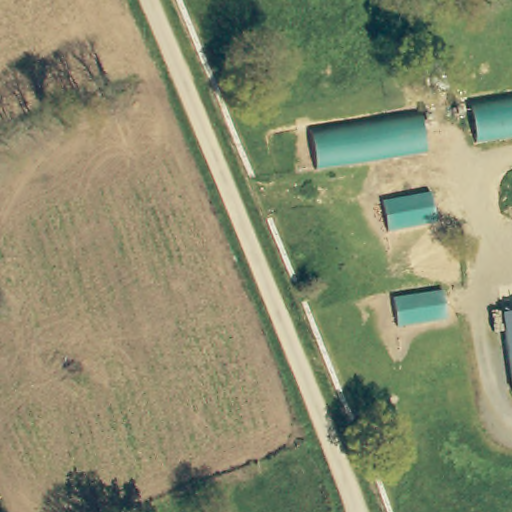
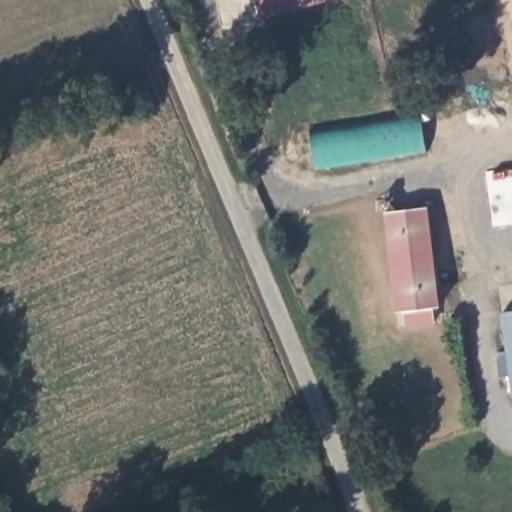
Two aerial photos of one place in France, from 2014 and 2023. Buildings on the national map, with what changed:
new [(259,18),(255,0),(331,0),(259,18)]
unchanged [(317,168),(311,136),(421,118),(426,149),(317,168)]
new [(441,305),(433,306),(435,323),(406,326),(404,311),(395,311),(385,212),(427,207),(441,305)]
unchanged [(512,313),(512,377),(503,314),(512,313)]

